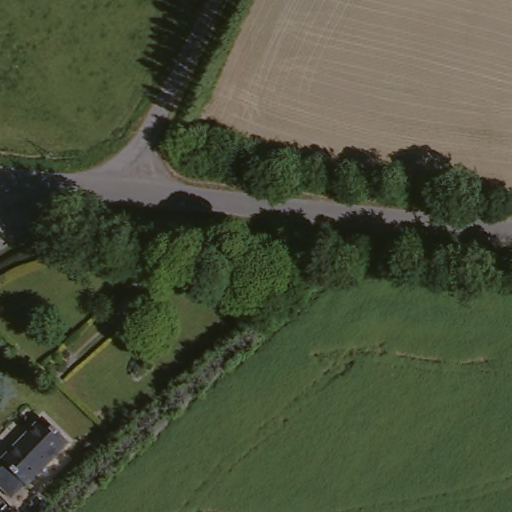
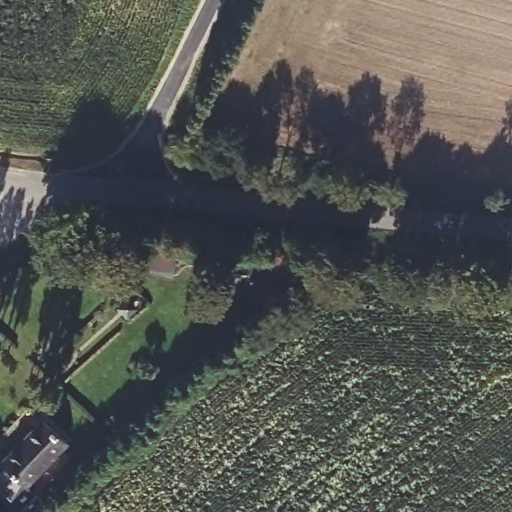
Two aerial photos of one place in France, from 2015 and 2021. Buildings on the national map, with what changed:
unchanged [(107,271),(147,280),(142,302),(101,292),(107,271)]
unchanged [(0,463),(1,462),(42,417),(68,439),(25,484),(9,500),(0,491),(0,463)]
unchanged [(51,512),(29,512),(41,501),(51,512)]

